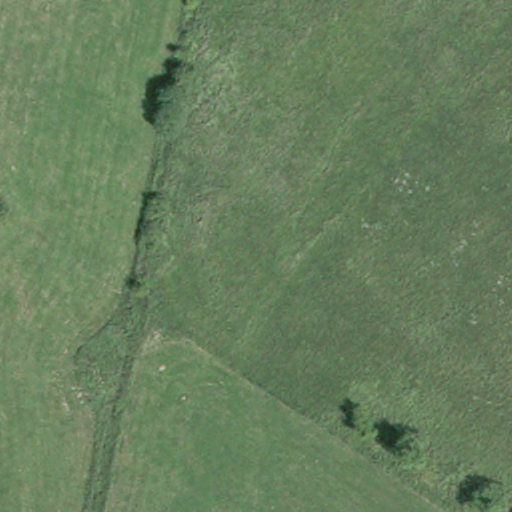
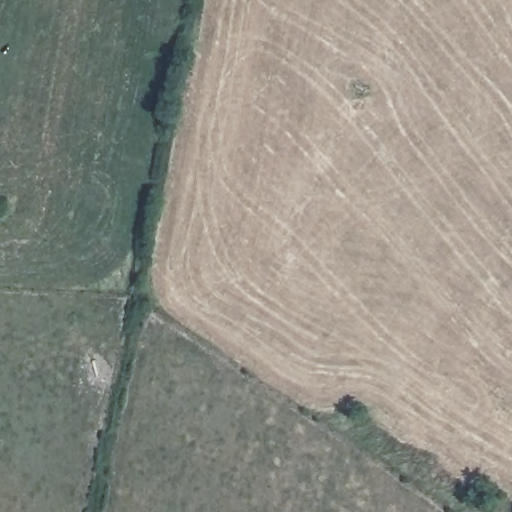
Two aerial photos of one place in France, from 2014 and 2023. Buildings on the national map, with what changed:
[]

